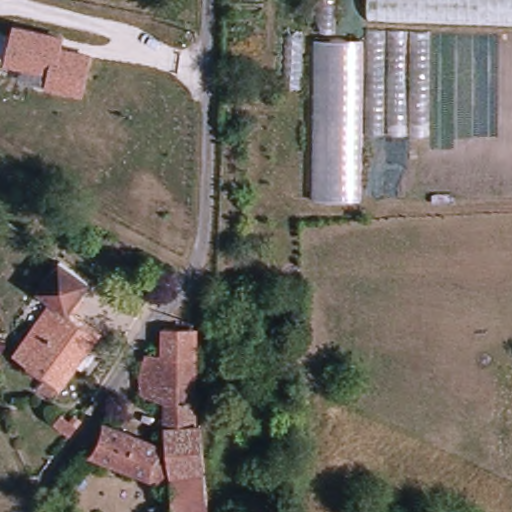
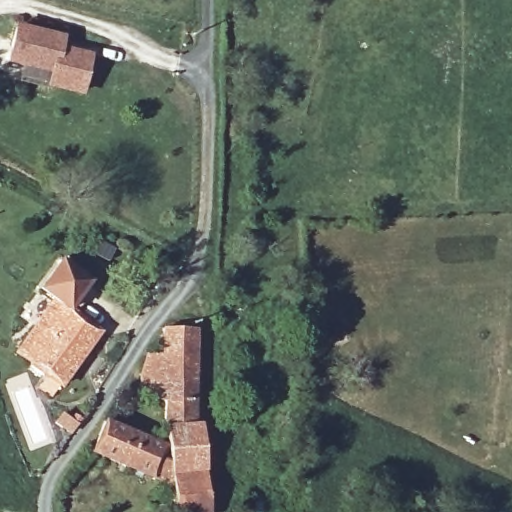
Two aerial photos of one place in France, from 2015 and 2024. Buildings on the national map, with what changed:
demolished [(366,22),(367,0),(512,0),(512,27),(366,22)]
unchanged [(67,35),(66,45),(93,52),(84,95),(48,87),(51,73),(7,63),(16,22),(67,35)]
demolished [(312,43),(362,43),(362,33),(443,35),(442,142),(360,140),(357,204),(310,202),(312,43)]
unchanged [(19,361),(55,306),(36,295),(57,264),(90,286),(82,299),(92,305),(81,322),(98,332),(56,402),(41,393),(49,382),(19,361)]
unchanged [(150,356),(174,322),(200,322),(199,358),(199,388),(198,404),(165,407),(166,423),(155,424),(150,356)]
unchanged [(168,456),(166,423),(165,407),(198,404),(198,432),(204,430),(209,512),(176,512),(173,493),(168,456)]
unchanged [(94,450),(111,422),(153,448),(168,456),(173,493),(94,450)]
unchanged [(260,497),(258,512),(239,512),(239,496),(260,497)]

